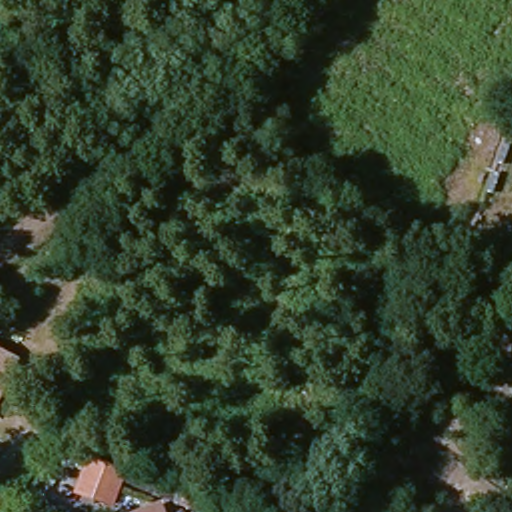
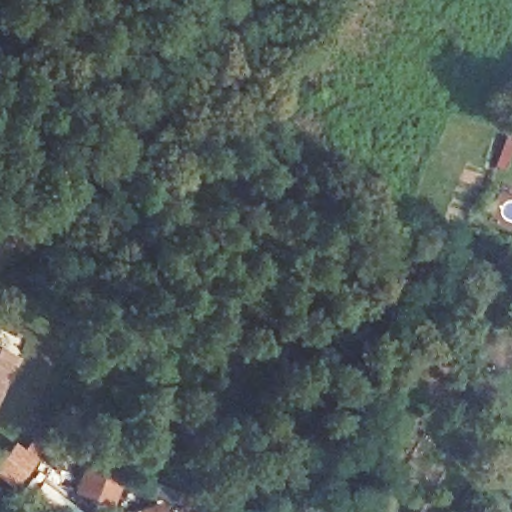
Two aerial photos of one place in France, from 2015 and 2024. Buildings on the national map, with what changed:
unchanged [(17,360),(12,371),(7,382),(0,397),(0,352),(17,360)]
new [(0,478),(0,461),(15,442),(25,450),(35,438),(46,448),(13,489),(0,478)]
unchanged [(95,505),(73,496),(87,461),(120,475),(115,486),(106,510),(95,505)]
unchanged [(184,512),(121,487),(124,478),(209,512),(184,512)]
unchanged [(163,512),(146,512),(160,506),(163,512)]

